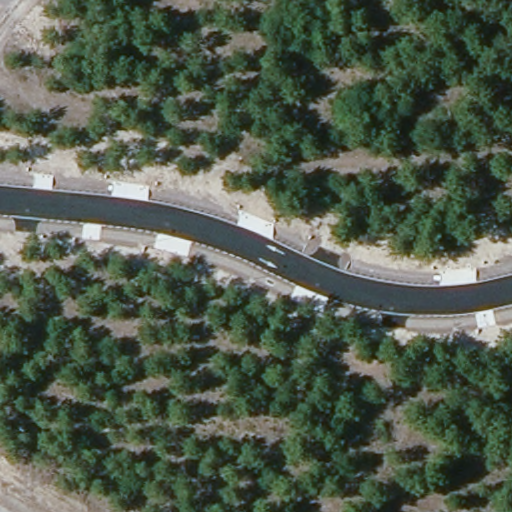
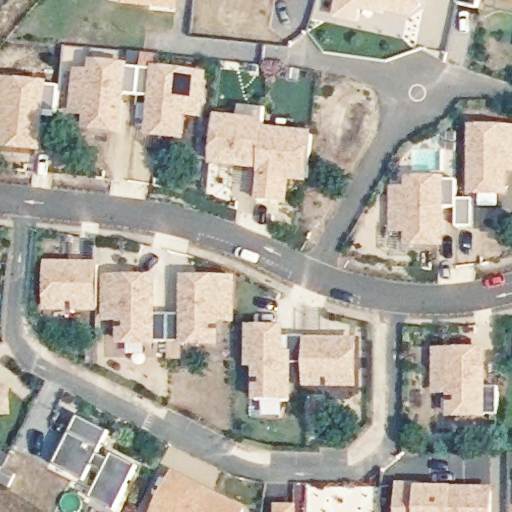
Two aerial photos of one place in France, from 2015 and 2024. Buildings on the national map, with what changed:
new [(181,13),(124,8),(125,0),(183,0),(181,13)]
new [(295,2),(289,0),(296,0),(295,2)]
new [(424,10),(409,19),(392,14),(390,18),(365,13),(362,26),(335,20),(339,0),(427,0),(424,10)]
new [(479,9),(459,5),(460,0),(482,0),(479,9)]
new [(512,3),(498,0),(512,0),(512,3)]
new [(149,135),(152,98),(128,96),(124,135),(86,130),(87,115),(73,114),(77,69),(94,70),(94,61),(131,64),(130,69),(155,72),(155,67),(208,72),(204,118),(188,116),(185,141),(149,135)]
new [(6,148),(9,124),(0,123),(0,78),(50,83),(49,87),(62,88),(58,114),(48,113),(43,152),(6,148)]
new [(261,177),(261,171),(213,166),(218,116),(267,121),(265,128),(314,134),(309,183),(261,177)]
new [(512,175),(509,175),(509,196),(470,196),(470,127),(512,127),(512,175)]
new [(408,189),(407,177),(447,178),(446,183),(457,184),(457,201),(475,202),(475,230),(457,229),(457,208),(445,208),(445,249),(411,248),(411,251),(391,250),(391,189),(408,189)]
new [(53,257),(103,258),(103,299),(53,299),(53,257)]
new [(111,270),(159,271),(159,307),(174,307),(174,335),(125,334),(126,310),(111,310),(111,270)]
new [(174,307),(190,307),(190,271),(238,272),(237,312),(222,312),(222,335),(174,335),(174,307)]
new [(256,322),(288,322),(288,344),(295,344),(295,329),(311,329),(311,333),(311,356),(296,356),(295,394),(263,393),(263,359),(256,359),(256,322)]
new [(311,356),(311,333),(361,333),(360,376),(311,376),(311,356)]
new [(443,343),(491,343),(491,379),(506,379),(506,407),(458,407),(458,383),(443,383),(443,343)]
new [(84,408),(115,424),(104,446),(115,452),(118,446),(143,458),(121,503),(95,491),(108,465),(97,459),(90,473),(59,458),(84,408)]
new [(156,512),(174,473),(248,509),(247,512),(156,512)]
new [(427,479),(427,482),(499,483),(499,512),(406,512),(406,479),(427,479)]
new [(302,500),(302,512),(285,512),(285,500),(302,500)]

